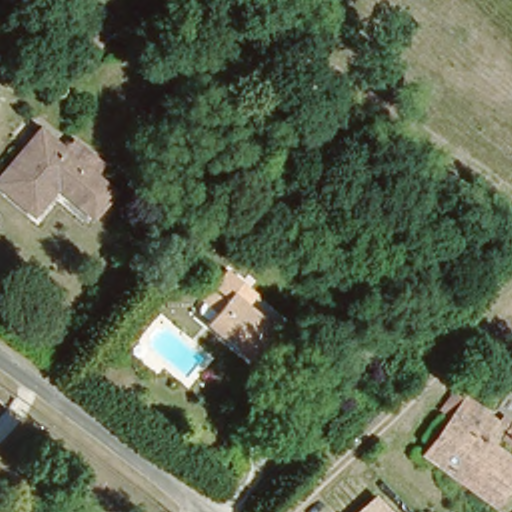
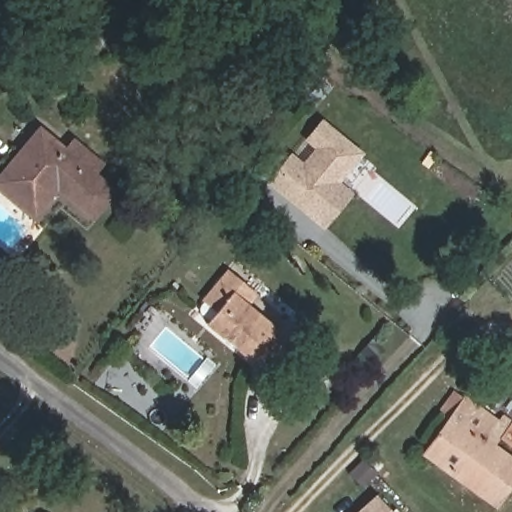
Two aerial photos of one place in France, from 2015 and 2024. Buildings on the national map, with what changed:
new [(340,182),(353,194),(322,230),(266,182),(290,152),(302,163),(314,148),(304,139),(321,118),(364,153),(340,182)]
unchanged [(74,137),(106,161),(99,171),(117,189),(94,219),(58,190),(36,215),(0,186),(0,171),(40,125),(66,145),(74,137)]
unchanged [(282,357),(262,343),(253,356),(206,322),(209,318),(202,313),(200,309),(201,305),(205,299),(201,296),(224,265),(239,275),(251,284),(242,297),(276,323),(271,330),(291,344),(282,357)]
unchanged [(512,464),(512,481),(495,502),(434,455),(427,450),(451,419),(448,416),(462,399),(502,431),(507,424),(512,428),(512,446),(498,435),(490,446),(512,464)]
unchanged [(393,512),(357,512),(377,494),(393,512)]

